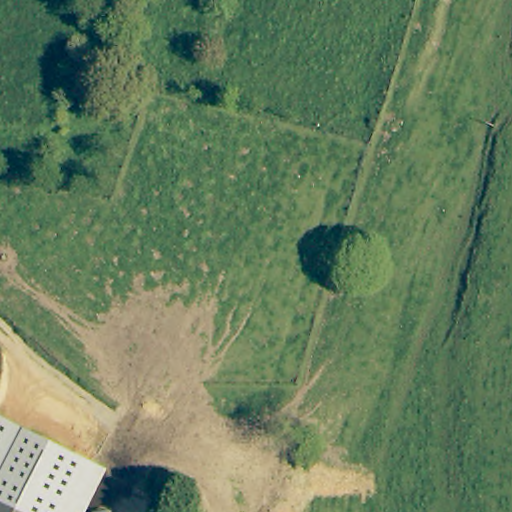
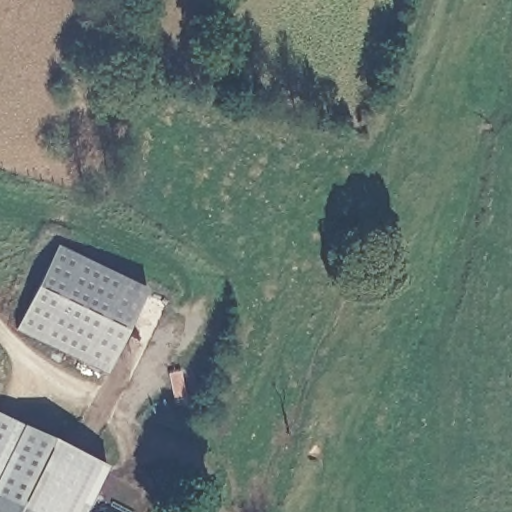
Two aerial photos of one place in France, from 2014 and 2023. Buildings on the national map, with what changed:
new [(106,375),(16,330),(59,245),(149,290),(106,375)]
unchanged [(109,467),(88,512),(26,512),(1,498),(0,498),(0,414),(25,427),(109,467)]
unchanged [(0,498),(1,498),(0,500),(0,498)]
unchanged [(26,512),(0,512),(0,500),(1,498),(26,512)]

